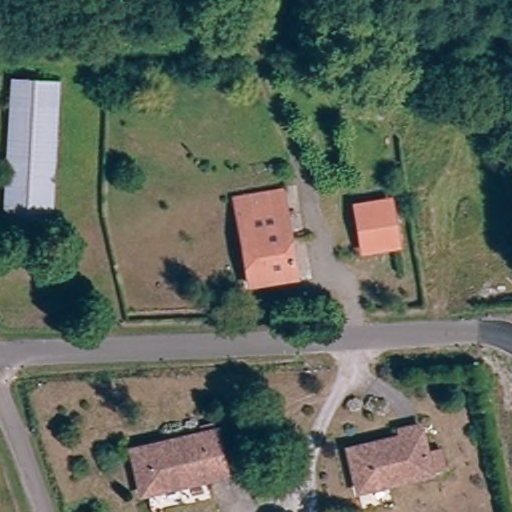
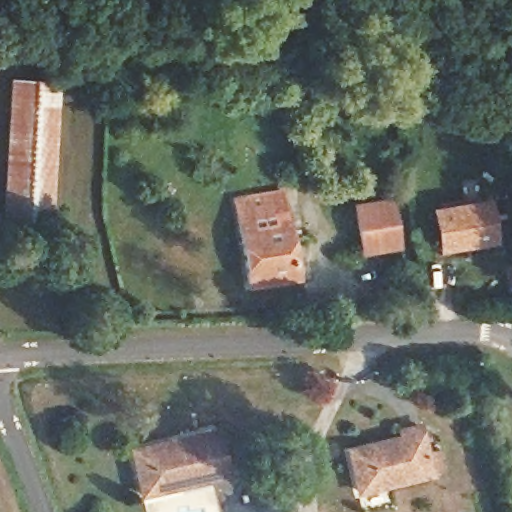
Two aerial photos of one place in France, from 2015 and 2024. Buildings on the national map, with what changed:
unchanged [(49,242),(0,239),(0,232),(11,80),(60,83),(49,242)]
unchanged [(237,202),(281,195),(293,277),(249,283),(237,202)]
new [(429,207),(489,195),(497,243),(437,253),(429,207)]
unchanged [(361,253),(356,211),(388,206),(394,247),(361,253)]
unchanged [(387,445),(402,442),(401,432),(420,428),(432,480),(399,487),(387,445)]
unchanged [(222,481),(141,496),(130,449),(212,433),(222,481)]
unchanged [(359,497),(348,454),(387,445),(399,487),(359,497)]

